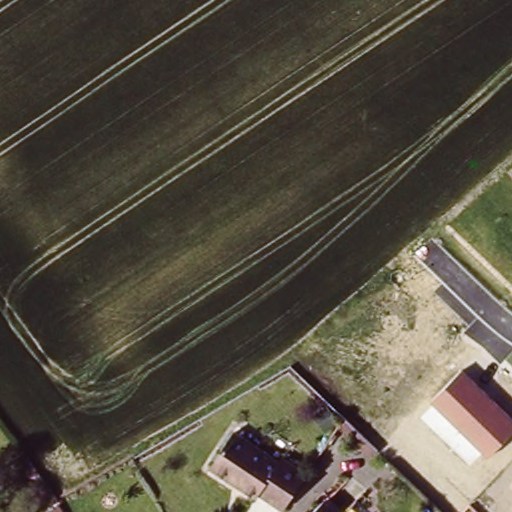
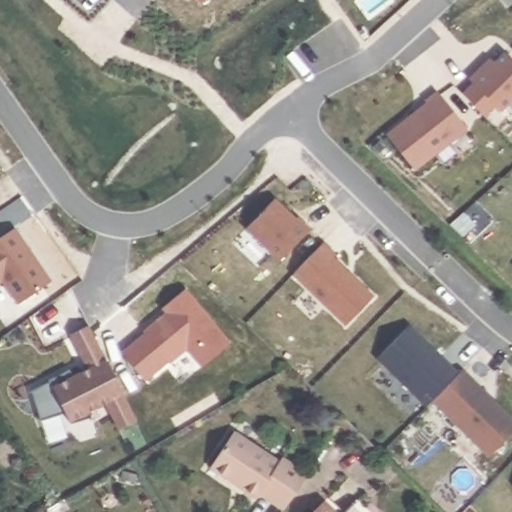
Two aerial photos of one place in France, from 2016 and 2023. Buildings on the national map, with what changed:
new [(200,3),(198,0),(205,0),(200,3)]
new [(500,112),(495,107),(485,116),(462,93),(472,82),(468,79),(489,59),(493,61),(503,51),(512,60),(512,101),(500,112)]
new [(416,170),(386,132),(425,102),(423,100),(436,90),(468,129),(416,170)]
new [(278,260),(246,229),(275,197),(296,217),(298,215),(310,226),(278,260)]
new [(3,281),(0,283),(0,236),(15,226),(51,279),(17,303),(3,281)]
new [(345,326),(292,275),(323,242),(335,254),(333,256),(375,295),(345,326)]
new [(203,365),(187,347),(145,380),(123,351),(145,333),(142,330),(160,317),(161,319),(168,314),(162,306),(186,288),(231,341),(203,365)]
new [(118,431),(106,402),(91,408),(91,416),(70,422),(63,412),(40,419),(30,390),(45,382),(45,380),(70,368),(74,373),(87,367),(70,333),(90,323),(139,420),(118,431)]
new [(432,402),(427,407),(376,358),(410,323),(461,374),(432,402)]
unchanged [(465,370),(512,418),(512,433),(488,457),(432,402),(465,370)]
unchanged [(378,448),(370,455),(338,425),(345,415),(378,448)]
unchanged [(285,511),(260,495),(256,499),(211,469),(235,435),(280,465),(282,462),(306,477),(285,511)]
new [(62,512),(44,512),(58,504),(62,512)]
unchanged [(318,512),(325,505),(332,512),(318,512)]

